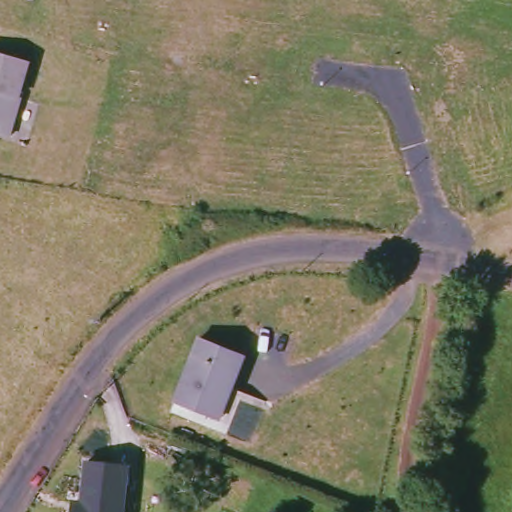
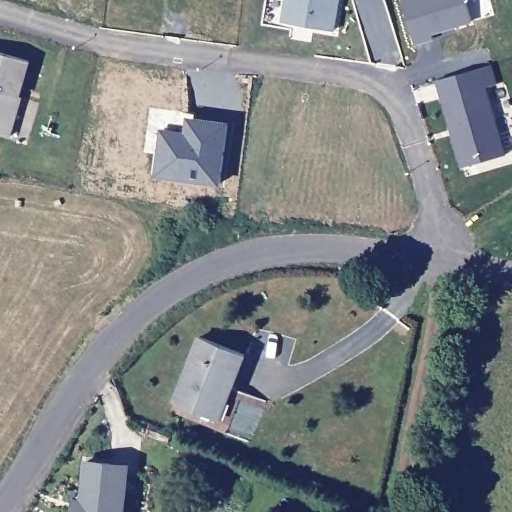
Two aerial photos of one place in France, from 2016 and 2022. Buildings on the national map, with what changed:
new [(286,0),(341,0),(336,31),(283,21),(286,0)]
new [(432,39),(414,44),(402,0),(466,0),(472,21),(431,34),(432,39)]
unchanged [(36,58),(27,92),(30,93),(18,136),(0,130),(0,48),(36,58)]
new [(497,84),(487,86),(506,154),(462,168),(437,81),(492,65),(497,84)]
new [(161,129),(184,133),(189,129),(191,118),(225,122),(218,182),(154,173),(161,129)]
unchanged [(218,425),(179,410),(204,345),(248,363),(235,397),(223,427),(218,425)]
unchanged [(129,512),(77,512),(78,506),(88,507),(91,461),(131,463),(129,512)]

